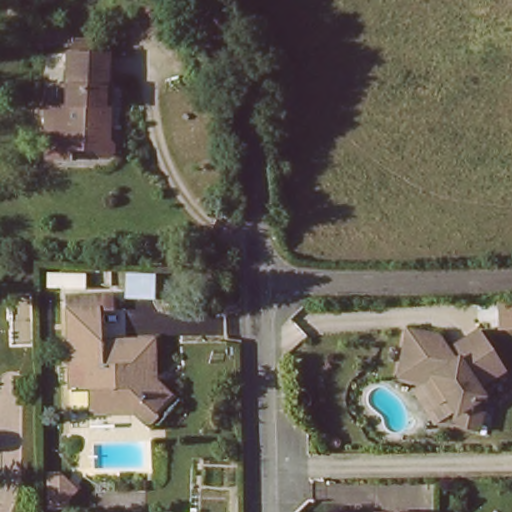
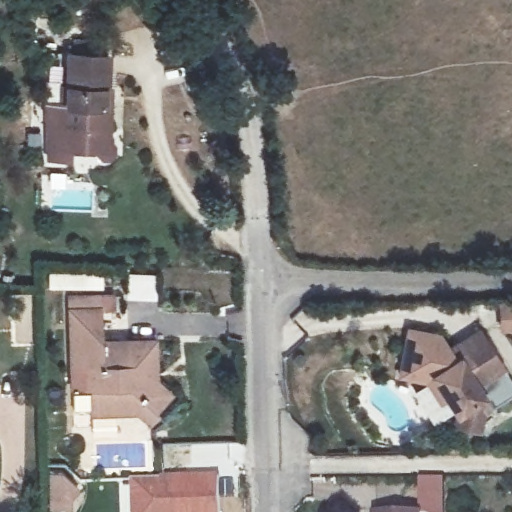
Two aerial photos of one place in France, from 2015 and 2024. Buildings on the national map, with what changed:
unchanged [(110,107),(110,131),(55,133),(55,130),(54,107),(53,87),(65,86),(64,56),(100,58),(101,87),(109,87),(110,107)]
unchanged [(111,306),(112,340),(158,341),(158,381),(175,394),(162,415),(145,403),(138,414),(93,412),(93,388),(103,387),(105,363),(80,362),(80,339),(81,305),(111,306)]
unchanged [(508,313),(512,314),(512,338),(507,338),(508,313)]
unchanged [(429,380),(401,376),(403,368),(409,328),(442,333),(450,348),(480,327),(508,368),(482,385),(487,395),(479,400),(485,410),(483,429),(457,425),(457,411),(449,397),(442,401),(429,380)]
new [(47,467),(54,467),(57,467),(62,468),(67,471),(82,489),(73,499),(71,509),(46,508),(47,467)]
new [(175,474),(224,474),(219,512),(131,512),(130,478),(175,474)]

